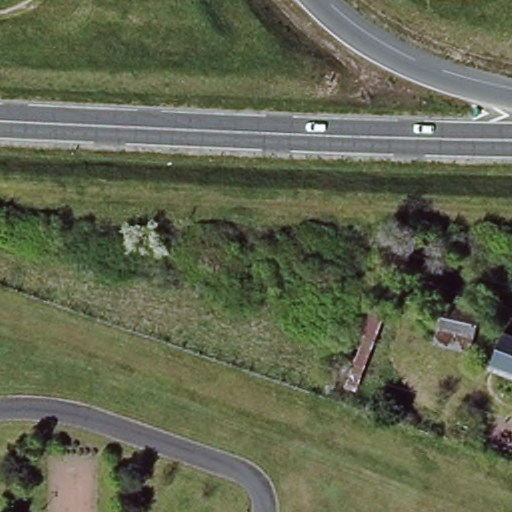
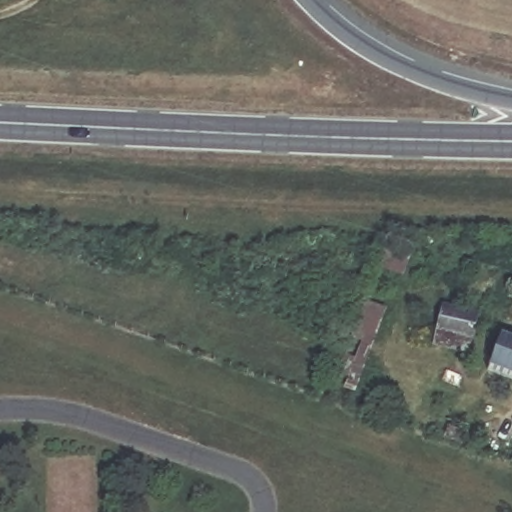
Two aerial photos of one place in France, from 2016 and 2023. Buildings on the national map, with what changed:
unchanged [(332,385),(392,239),(416,246),(357,397),(332,385)]
unchanged [(429,336),(436,303),(477,310),(466,346),(429,336)]
unchanged [(499,335),(512,340),(512,376),(487,366),(499,335)]
unchanged [(512,434),(512,464),(476,446),(484,425),(484,422),(502,430),(512,434)]

